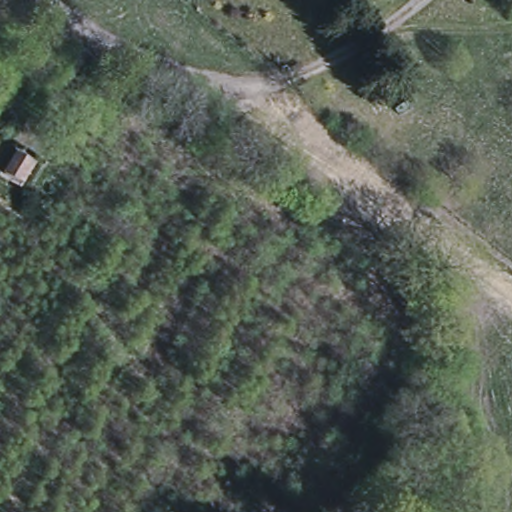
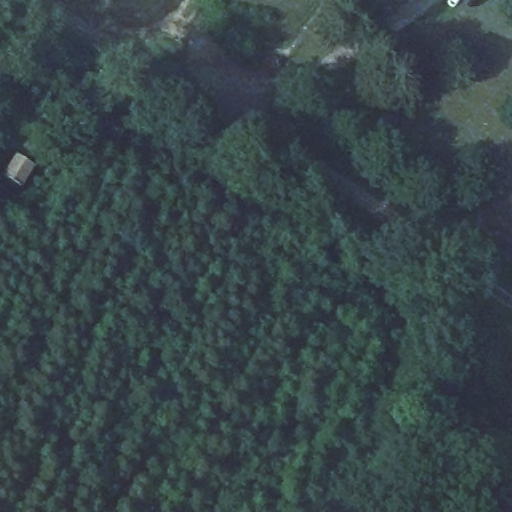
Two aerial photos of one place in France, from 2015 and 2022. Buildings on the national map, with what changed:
unchanged [(21,186),(4,175),(17,154),(34,165),(21,186)]

